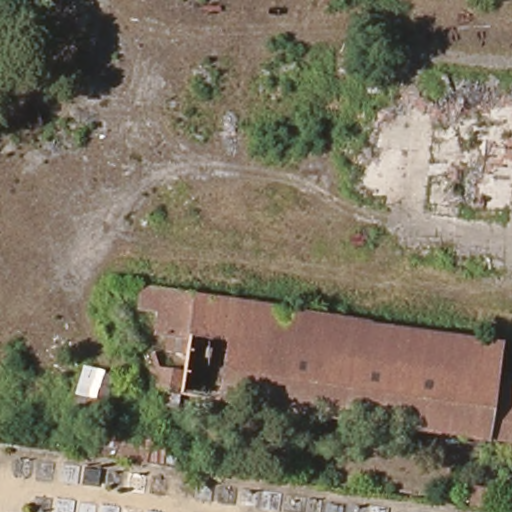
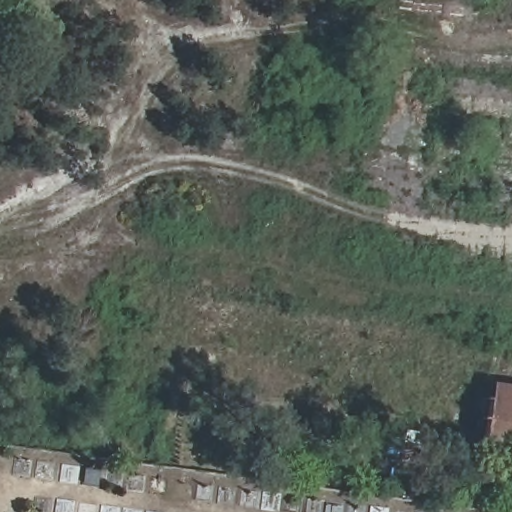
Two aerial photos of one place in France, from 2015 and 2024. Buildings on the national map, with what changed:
demolished [(162,295),(292,315),(498,345),(492,387),(365,368),(214,345),(188,341),(156,336),(162,295)]
demolished [(188,341),(214,345),(365,368),(492,387),(491,397),(512,400),(512,441),(396,424),(179,393),(188,341)]
demolished [(105,374),(105,380),(115,383),(107,407),(78,395),(87,367),(105,374)]
new [(479,435),(485,395),(512,398),(512,440),(479,435)]
demolished [(151,441),(147,464),(95,457),(97,433),(151,441)]

